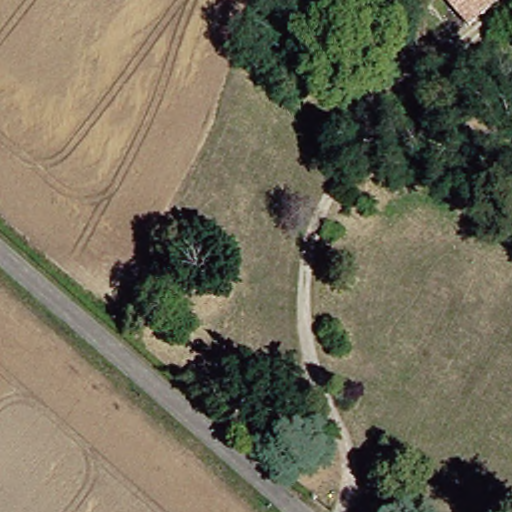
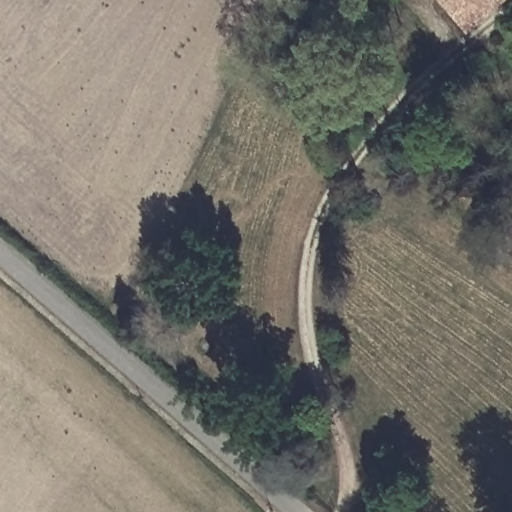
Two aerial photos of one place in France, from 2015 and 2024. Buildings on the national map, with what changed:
unchanged [(427,0),(428,0),(488,0),(460,24),(457,20),(450,27),(427,0)]

